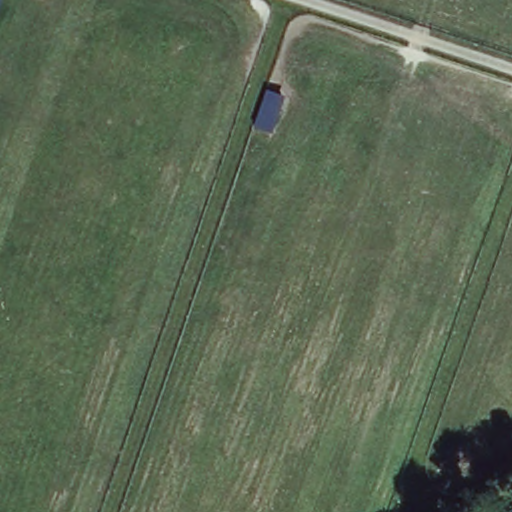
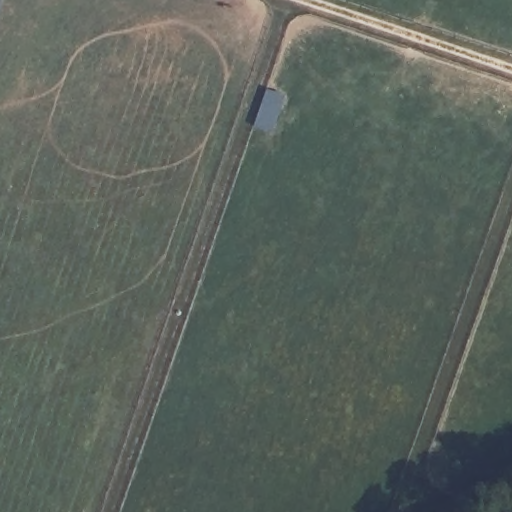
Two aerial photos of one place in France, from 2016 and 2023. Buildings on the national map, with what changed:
unchanged [(262,89),(281,94),(270,132),(251,126),(262,89)]

